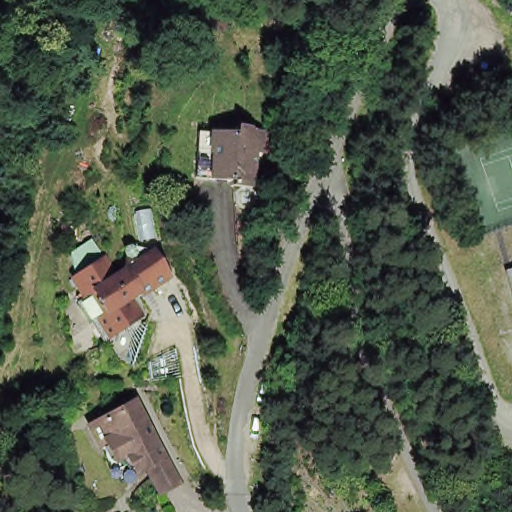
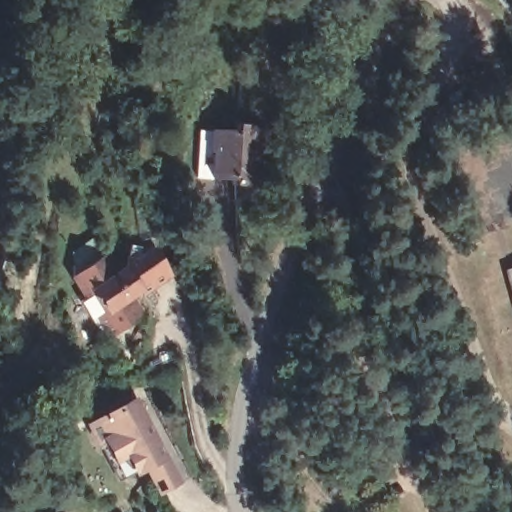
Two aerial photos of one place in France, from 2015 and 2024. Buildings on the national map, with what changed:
unchanged [(237,122),(250,121),(250,125),(267,124),(269,147),(257,147),(257,183),(232,183),(232,176),(214,175),(197,175),(197,128),(210,128),(237,127),(237,122)]
unchanged [(155,241),(135,243),(130,209),(150,205),(155,241)]
unchanged [(104,335),(95,318),(102,314),(90,290),(81,296),(70,276),(102,257),(113,273),(120,269),(122,268),(125,244),(152,251),(165,274),(155,280),(134,292),(125,296),(137,318),(104,335)]
unchanged [(505,268),(512,265),(512,296),(505,268)]
unchanged [(146,382),(143,359),(179,347),(182,379),(146,382)]
unchanged [(163,493),(152,470),(137,477),(127,458),(119,462),(100,429),(92,432),(82,412),(129,385),(170,460),(183,482),(163,493)]

